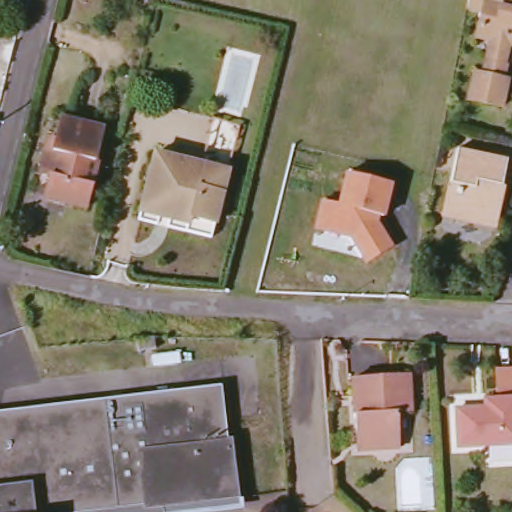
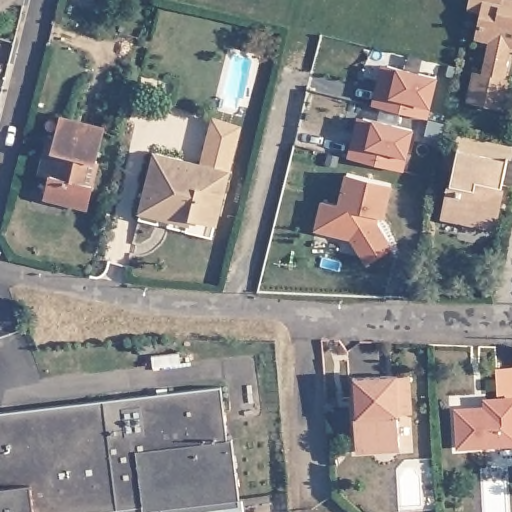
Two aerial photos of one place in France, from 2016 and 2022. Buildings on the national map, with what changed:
unchanged [(509,84),(512,84),(512,90),(508,111),(475,105),(480,77),(487,79),(491,46),(480,44),(485,15),(470,11),(473,0),(512,0),(512,68),(509,84)]
new [(381,64),(397,67),(438,77),(431,107),(427,119),(372,105),(381,64)]
new [(242,127),(232,165),(215,161),(200,157),(211,117),(242,127)]
new [(357,117),(374,120),(413,131),(407,159),(403,172),(347,157),(357,117)]
unchanged [(105,133),(99,163),(102,164),(90,210),(48,199),(52,181),(42,178),(47,152),(52,154),(59,121),(105,133)]
unchanged [(147,205),(149,196),(162,147),(215,161),(198,226),(187,223),(145,212),(147,205)]
unchanged [(512,164),(512,172),(508,190),(505,189),(502,202),(505,204),(500,225),(485,221),(483,229),(447,219),(462,152),(512,164)]
unchanged [(232,165),(214,230),(198,226),(215,161),(232,165)]
unchanged [(382,227),(394,248),(367,265),(348,239),(315,231),(320,202),(342,206),(347,175),(394,187),(382,227)]
unchanged [(512,369),(512,446),(457,449),(457,407),(485,407),(485,398),(498,398),(500,369),(512,369)]
unchanged [(356,432),(354,375),(411,375),(412,413),(398,413),(399,448),(369,449),(357,449),(356,432)]
unchanged [(222,446),(231,447),(238,507),(191,512),(143,512),(142,512),(138,512),(0,512),(0,416),(214,391),(222,446)]

